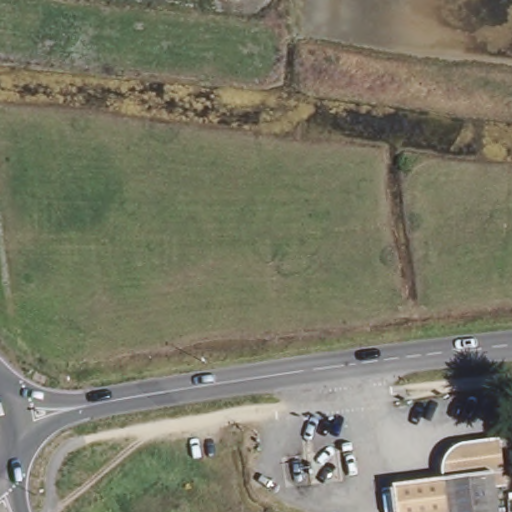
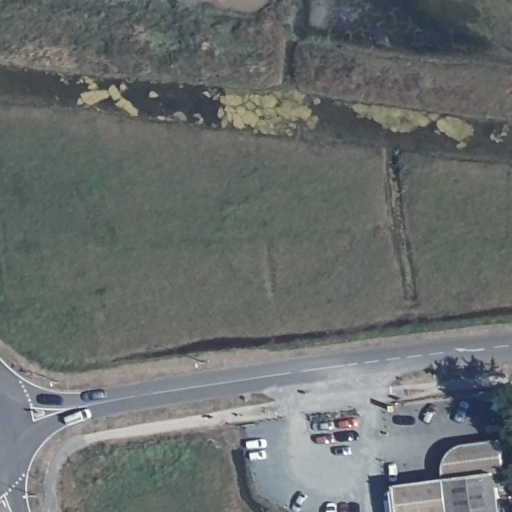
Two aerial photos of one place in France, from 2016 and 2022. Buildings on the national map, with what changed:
unchanged [(396,485),(444,477),(444,461),(451,450),(462,443),(502,438),(509,485),(500,485),(499,477),(449,484),(453,512),(398,512),(396,485)]
unchanged [(504,512),(453,512),(449,484),(499,477),(504,512)]

